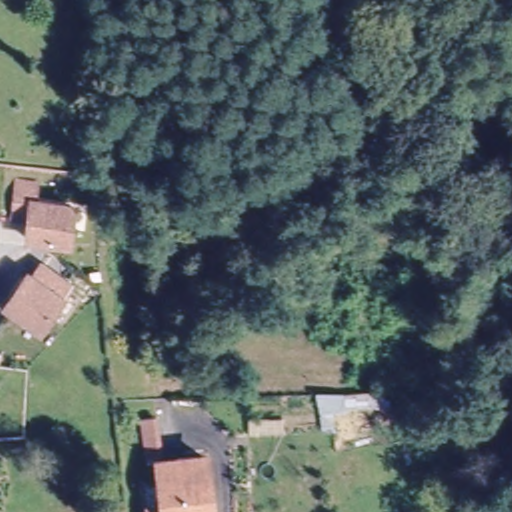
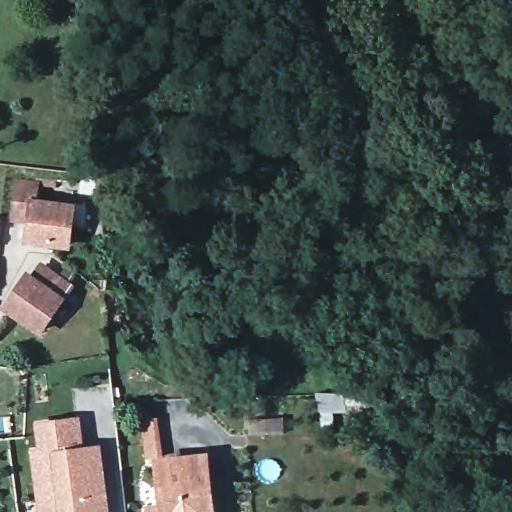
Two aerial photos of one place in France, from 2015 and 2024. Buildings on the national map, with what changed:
unchanged [(23,184),(41,185),(38,204),(77,209),(72,245),(33,240),(35,220),(19,219),(23,184)]
unchanged [(46,270),(71,286),(41,331),(7,308),(29,277),(32,280),(41,266),(46,270)]
unchanged [(159,453),(146,454),(142,415),(154,414),(159,453)]
new [(34,422),(80,415),(85,445),(102,443),(110,512),(38,512),(28,449),(37,447),(34,422)]
unchanged [(164,503),(159,458),(205,453),(208,480),(201,481),(204,512),(151,512),(150,505),(164,503)]

